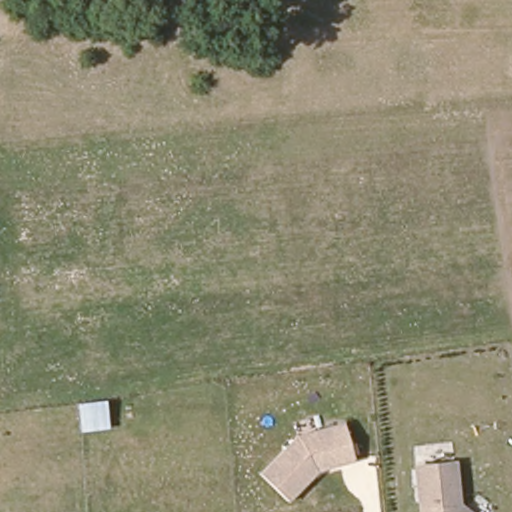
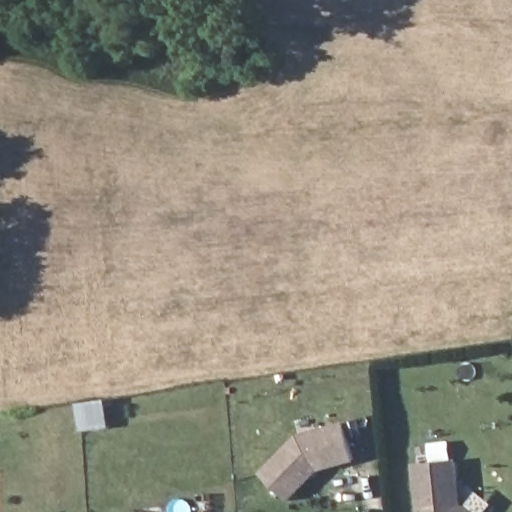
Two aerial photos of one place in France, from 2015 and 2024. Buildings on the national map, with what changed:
unchanged [(103,399),(104,424),(79,426),(78,400),(103,399)]
unchanged [(342,425),(352,462),(315,471),(286,502),(259,475),(296,437),(342,425)]
unchanged [(450,460),(455,502),(467,512),(416,512),(411,465),(450,460)]

